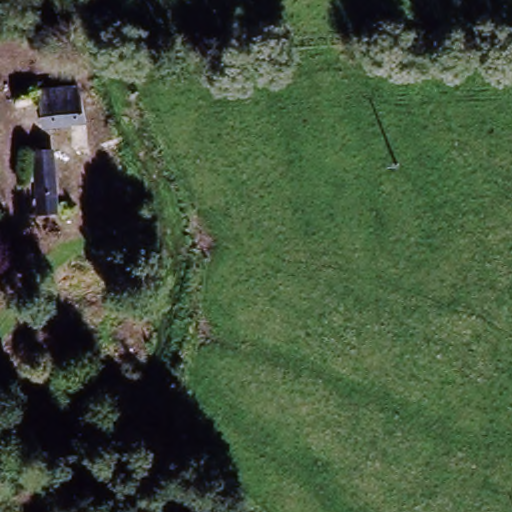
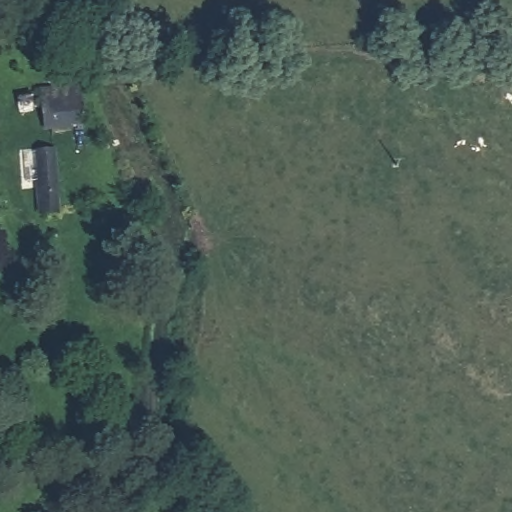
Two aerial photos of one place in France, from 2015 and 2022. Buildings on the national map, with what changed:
unchanged [(45,116),(43,94),(76,92),(78,114),(45,116)]
unchanged [(5,96),(19,95),(20,107),(7,108),(5,96)]
unchanged [(2,142),(0,143),(0,129),(2,129),(2,142)]
unchanged [(62,222),(37,224),(32,157),(58,155),(62,222)]

